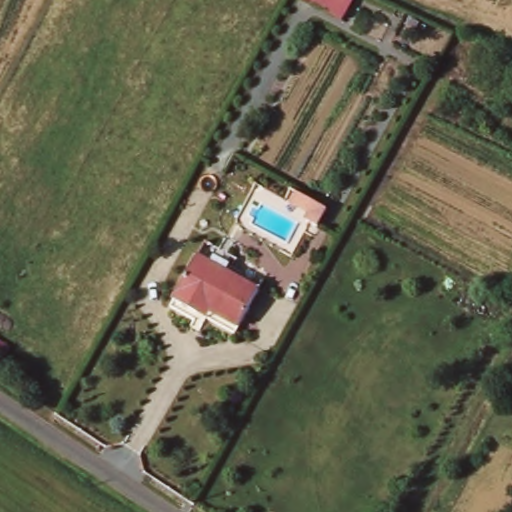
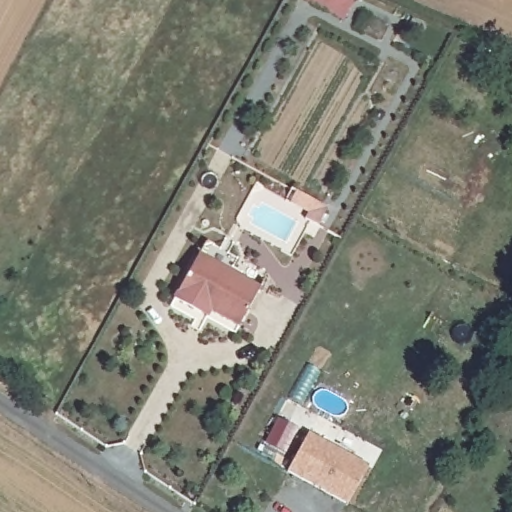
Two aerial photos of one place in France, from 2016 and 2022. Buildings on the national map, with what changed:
unchanged [(357,0),(347,21),(298,0),(357,0)]
new [(297,187),(329,205),(319,223),(308,217),(312,210),(290,197),(297,187)]
unchanged [(230,269),(260,287),(240,327),(202,305),(197,313),(173,299),(198,252),(230,269)]
new [(306,432),(367,466),(346,503),(285,470),(306,432)]

